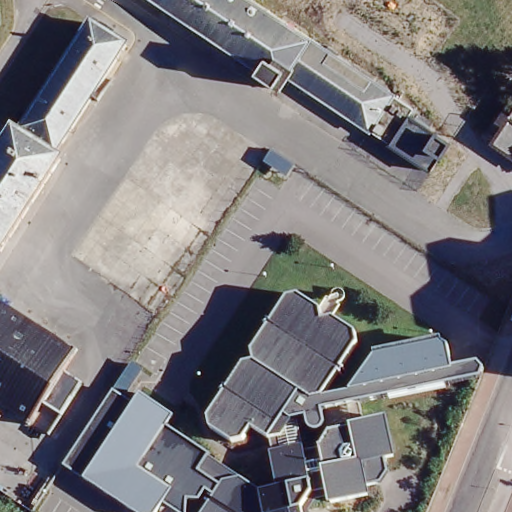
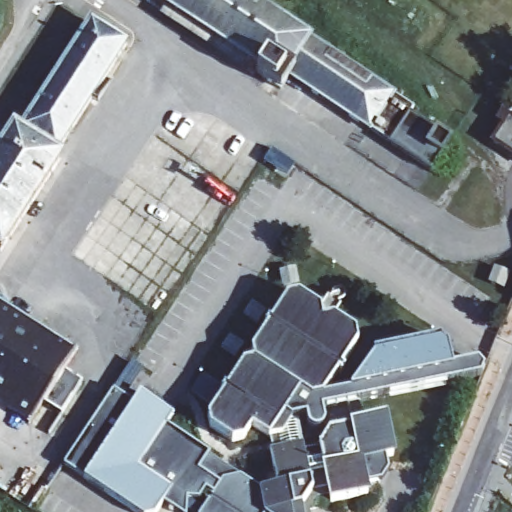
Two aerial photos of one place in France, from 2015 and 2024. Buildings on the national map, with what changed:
unchanged [(410,116),(452,143),(434,171),(290,77),(281,90),(262,77),(259,74),(262,70),(157,0),(252,0),(415,108),(410,116)]
unchanged [(19,135),(92,23),(127,46),(54,157),(60,162),(0,254),(0,253),(0,153),(14,132),(19,135)]
unchanged [(494,142),(512,114),(512,154),(494,142)]
unchanged [(275,142),(278,144),(291,152),(284,163),(267,152),(275,142)]
unchanged [(386,485),(372,488),(374,496),(337,503),(336,496),(322,499),(315,511),(315,512),(209,512),(220,496),(213,491),(206,501),(193,500),(192,512),(183,512),(170,504),(165,512),(139,512),(90,480),(90,478),(70,466),(120,391),(137,365),(147,371),(130,397),(140,404),(147,393),(180,416),(174,427),(217,455),(215,457),(247,478),(267,492),(284,488),(277,453),(279,453),(275,441),(259,430),(250,442),(239,444),(217,430),(215,418),(250,365),(260,362),(257,352),(293,298),(304,296),(327,310),(329,321),(340,318),(362,333),(364,344),(329,397),(356,392),(381,353),(445,340),(453,345),(458,367),(483,362),(492,367),(489,377),(365,403),(370,425),(392,420),(400,457),(392,458),(395,472),(386,485)]
unchanged [(42,405),(30,425),(0,405),(0,305),(75,353),(63,372),(82,384),(61,417),(42,405)]

